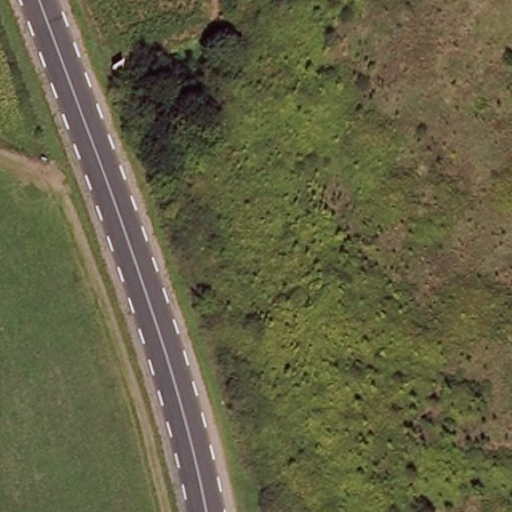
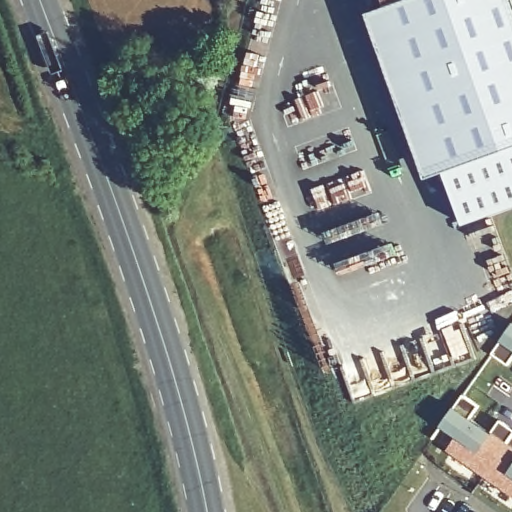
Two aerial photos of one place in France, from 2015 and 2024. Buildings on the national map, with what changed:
new [(387,5),(385,0),(512,0),(512,145),(447,169),(387,5)]
new [(387,5),(447,169),(429,177),(368,12),(387,5)]
new [(442,171),(447,169),(512,145),(512,208),(463,226),(442,171)]
new [(493,352),(512,325),(512,359),(509,364),(493,352)]
new [(471,417),(492,431),(501,418),(512,427),(512,491),(449,447),(433,437),(442,425),(464,392),(480,403),(471,417)]

